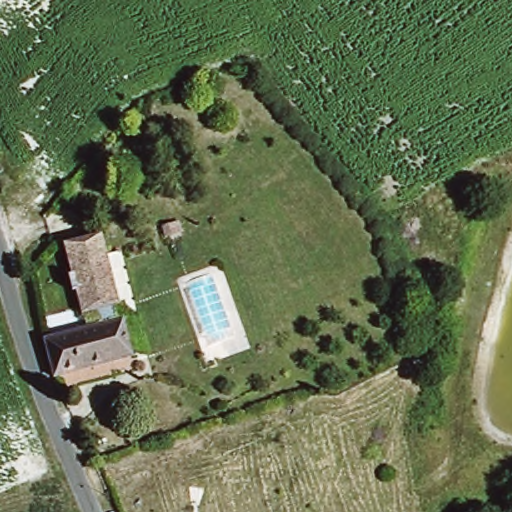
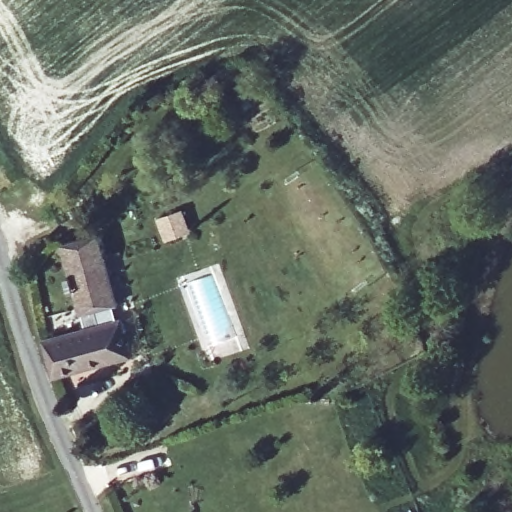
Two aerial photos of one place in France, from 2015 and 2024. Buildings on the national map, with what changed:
unchanged [(97,309),(85,312),(78,284),(70,287),(67,274),(75,273),(69,243),(106,234),(122,300),(116,302),(120,322),(102,327),(97,309)]
unchanged [(132,358),(50,375),(43,340),(102,327),(120,322),(125,321),(132,358)]

